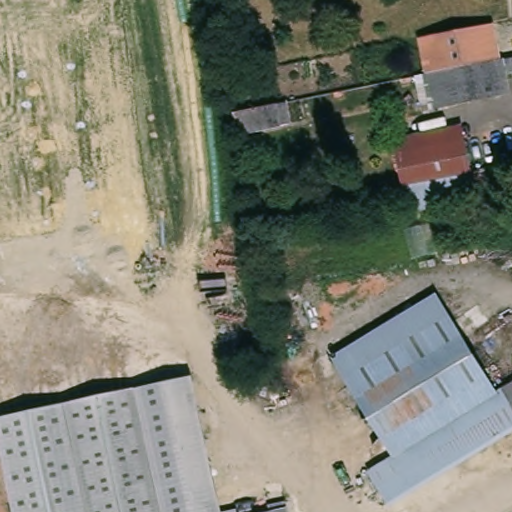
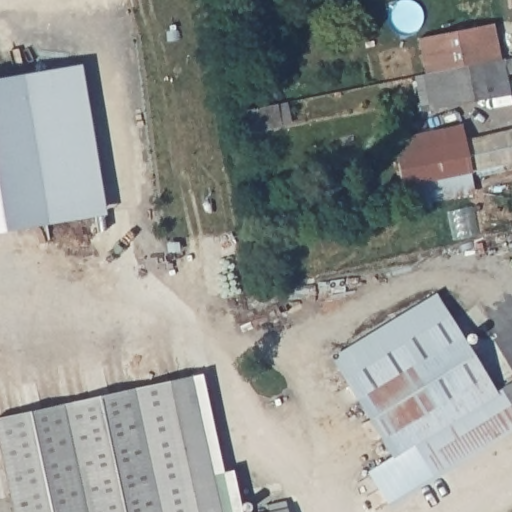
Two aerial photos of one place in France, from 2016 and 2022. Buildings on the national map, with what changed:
unchanged [(490,62),(472,66),(431,75),(421,77),(414,43),(483,28),(490,62)]
unchanged [(511,73),(512,76),(512,94),(436,110),(431,75),(472,66),(490,62),(494,61),(512,58),(512,73),(511,73)]
new [(100,219),(0,236),(0,83),(74,70),(100,219)]
unchanged [(266,140),(260,140),(261,146),(217,155),(213,132),(262,122),(266,140)]
unchanged [(392,146),(461,130),(468,160),(398,175),(392,146)]
unchanged [(505,157),(512,156),(512,178),(510,178),(505,157)]
unchanged [(384,501),(367,472),(390,456),(335,366),(440,302),(492,388),(485,392),(506,426),(384,501)]
unchanged [(134,388),(191,375),(222,512),(160,512),(134,388)]
unchanged [(492,388),(512,376),(512,436),(506,426),(485,392),(492,388)]
unchanged [(65,401),(134,388),(160,512),(87,512),(65,401)]
unchanged [(0,445),(0,415),(65,401),(87,512),(14,512),(0,445)]
unchanged [(268,502),(293,498),(295,512),(270,512),(268,502)]

